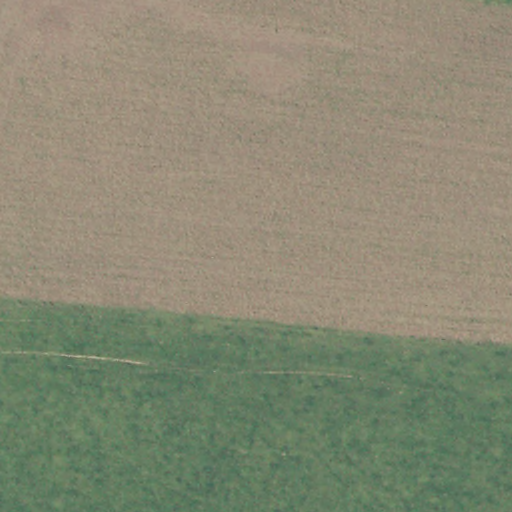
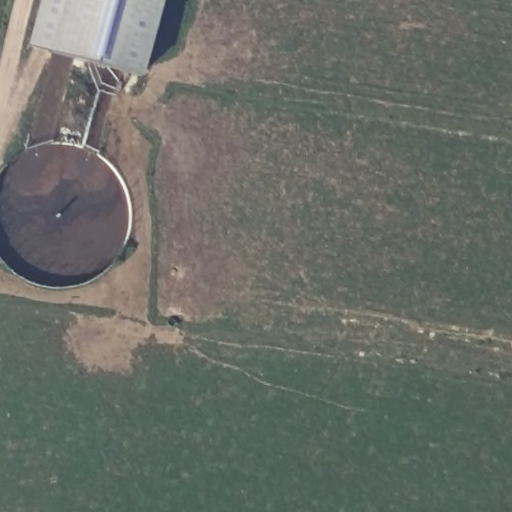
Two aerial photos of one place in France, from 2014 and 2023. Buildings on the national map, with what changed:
new [(136,77),(25,46),(38,0),(157,0),(136,77)]

